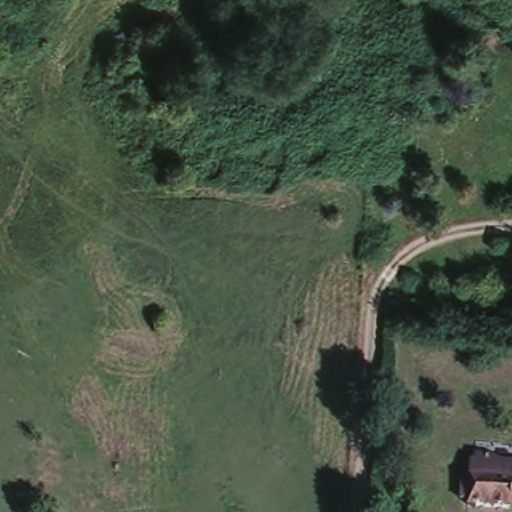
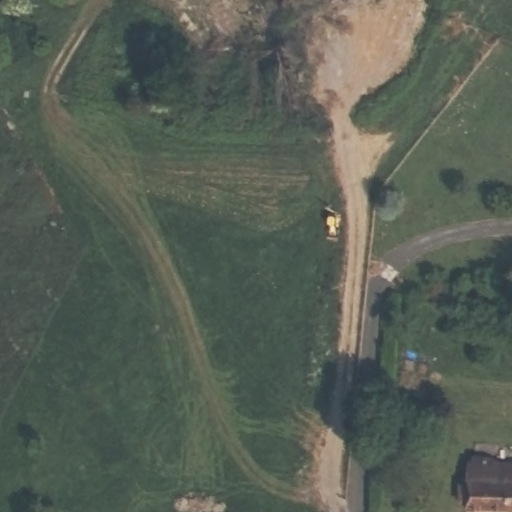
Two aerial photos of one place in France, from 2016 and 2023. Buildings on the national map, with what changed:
unchanged [(465,505),(467,462),(512,463),(512,506),(465,505)]

